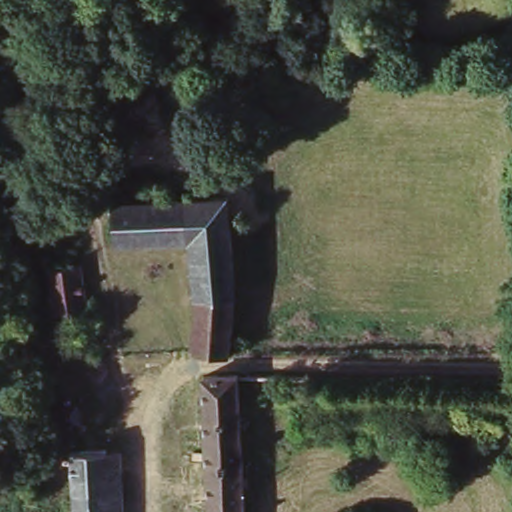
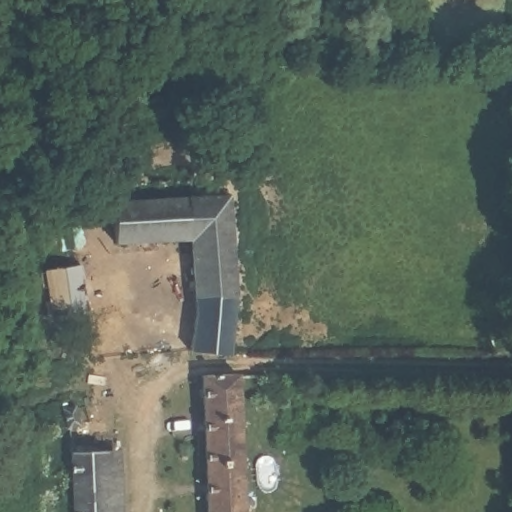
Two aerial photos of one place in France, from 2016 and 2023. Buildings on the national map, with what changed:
unchanged [(195,344),(199,303),(194,235),(120,237),(116,178),(172,175),(172,176),(196,175),(197,193),(234,191),(240,289),(233,344),(233,347),(195,344)]
unchanged [(85,264),(91,309),(59,313),(52,267),(85,264)]
unchanged [(243,374),(249,512),(214,512),(208,375),(243,374)]
unchanged [(76,406),(82,425),(70,427),(65,408),(76,406)]
unchanged [(113,512),(78,512),(76,451),(110,449),(113,512)]

